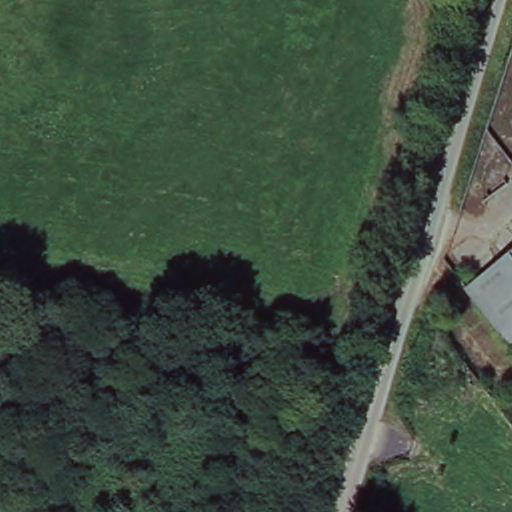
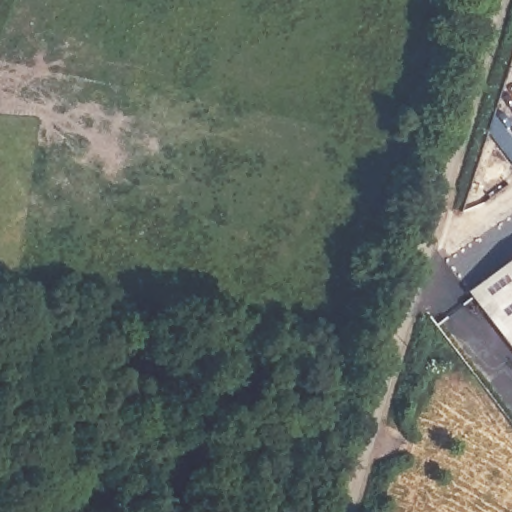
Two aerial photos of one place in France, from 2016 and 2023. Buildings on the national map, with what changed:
unchanged [(512,249),(512,347),(467,278),(512,249)]

